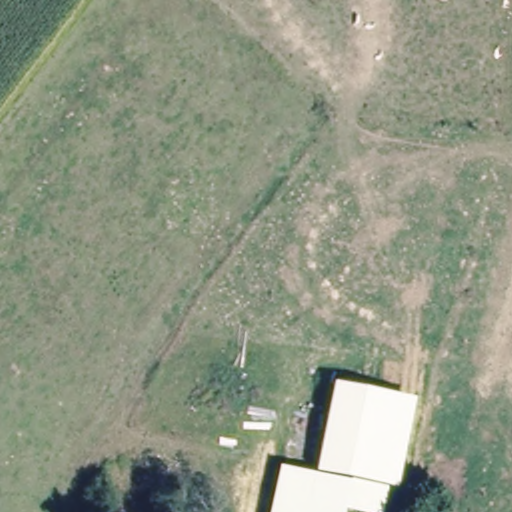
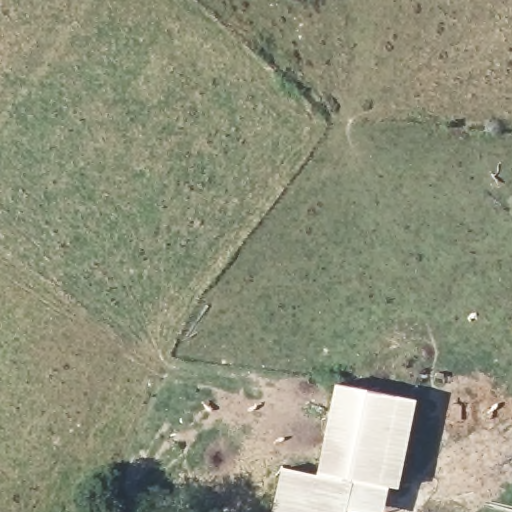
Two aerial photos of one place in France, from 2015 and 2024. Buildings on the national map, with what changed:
unchanged [(416,400),(399,491),(389,488),(385,512),(346,512),(347,505),(352,483),(315,476),(334,383),(416,400)]
unchanged [(315,476),(352,483),(347,505),(346,512),(271,512),(281,468),(315,476)]

